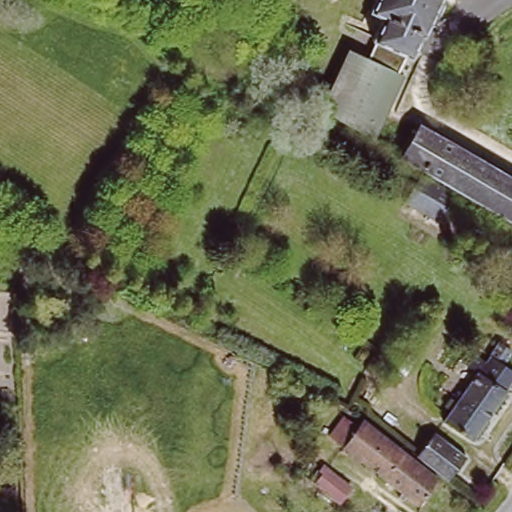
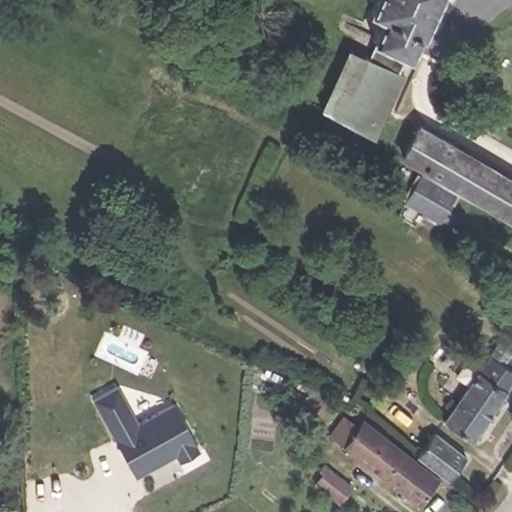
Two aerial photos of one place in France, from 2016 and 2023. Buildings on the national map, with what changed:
unchanged [(427,19),(422,30),(417,29),(410,52),(400,50),(395,67),(404,70),(374,135),(317,101),(327,80),(332,78),(339,80),(354,47),(360,50),(368,34),(362,31),(372,10),(359,4),(360,0),(444,0),(434,22),(427,19)]
unchanged [(512,179),(512,215),(403,151),(420,120),(459,142),(456,146),(512,179)]
unchanged [(457,189),(440,217),(405,196),(422,167),(457,189)]
unchanged [(510,381),(472,435),(444,416),(476,367),(466,361),(474,349),(485,356),(490,350),(512,365),(512,383),(510,381)]
new [(118,386),(139,423),(174,403),(200,450),(180,461),(177,455),(136,477),(95,400),(118,386)]
unchanged [(418,500),(342,441),(329,430),(342,412),(357,422),(362,416),(437,475),(418,500)]
unchanged [(435,428),(465,451),(447,475),(417,452),(435,428)]
unchanged [(352,485),(340,501),(315,483),(322,473),(319,470),(323,465),(352,485)]

